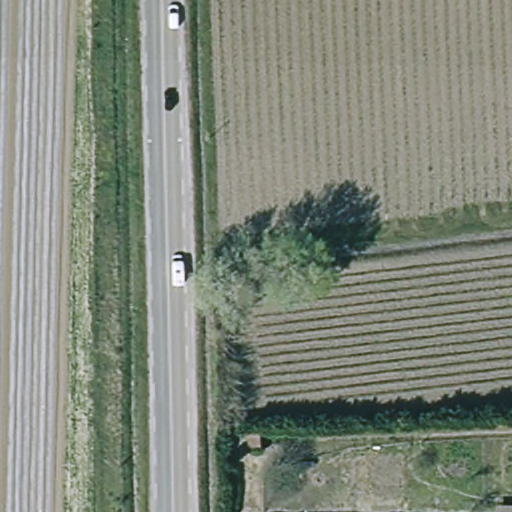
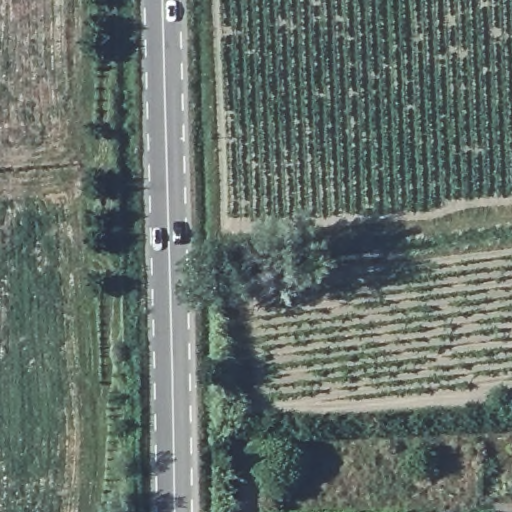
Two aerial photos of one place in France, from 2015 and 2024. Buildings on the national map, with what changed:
unchanged [(259,451),(248,450),(248,433),(260,432),(259,451)]

